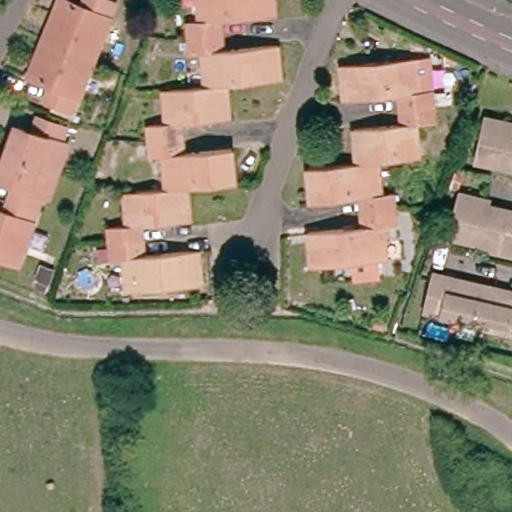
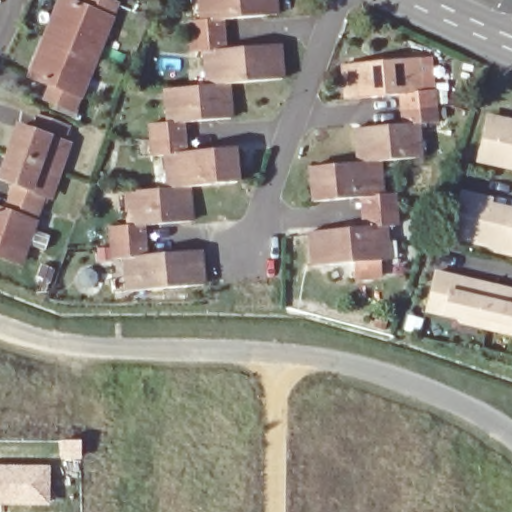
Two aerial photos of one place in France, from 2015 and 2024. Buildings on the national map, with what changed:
unchanged [(72,111),(47,101),(53,86),(29,76),(45,37),(60,0),(63,0),(84,9),(88,0),(105,0),(115,4),(94,57),(72,111)]
unchanged [(199,5),(202,5),(202,0),(274,0),(275,15),(220,20),(221,35),(190,37),(188,21),(200,20),(199,5)]
unchanged [(226,85),(210,85),(209,67),(204,68),(202,52),(191,54),(190,37),(221,35),(222,50),(277,45),(280,80),(226,85)]
unchanged [(405,95),(350,100),(346,65),(433,57),(438,107),(406,109),(405,95)]
unchanged [(229,119),(180,123),(181,137),(150,140),(149,125),(166,122),(165,107),(170,107),(169,89),(210,85),(226,85),(229,119)]
unchanged [(438,107),(440,122),(421,124),(422,139),(418,140),(420,158),(379,162),(361,163),(358,129),(407,124),(406,109),(438,107)]
unchanged [(477,161),(487,118),(512,124),(512,131),(511,134),(512,134),(512,168),(477,161)]
unchanged [(43,197),(37,195),(32,209),(13,263),(0,259),(0,214),(1,214),(11,186),(0,181),(0,159),(11,127),(30,134),(35,119),(61,128),(55,143),(61,145),(52,171),(43,197)]
unchanged [(181,137),(183,152),(232,148),(235,182),(186,187),(171,188),(170,170),(165,171),(164,156),(151,157),(150,140),(181,137)]
unchanged [(379,162),(380,180),(385,180),(386,194),(397,193),(398,209),(367,212),(365,198),(317,202),(313,167),(361,163),(379,162)]
unchanged [(171,188),(187,187),(190,222),(141,226),(142,241),(110,244),(109,227),(127,226),(125,211),(131,210),(130,192),(166,189),(171,188)]
unchanged [(495,242),(488,246),(452,237),(462,194),(488,200),(486,210),(493,211),(498,207),(512,211),(512,246),(495,242)]
unchanged [(358,278),(356,262),(316,267),(313,232),(368,227),(367,212),(398,209),(400,226),(388,227),(390,242),(385,242),(386,260),(383,260),(385,276),(358,278)]
unchanged [(142,241),(143,255),(199,251),(201,286),(132,292),(130,273),(125,273),(123,258),(111,260),(110,244),(142,241)]
unchanged [(510,332),(506,326),(460,314),(454,318),(421,311),(430,273),(462,281),(465,287),(471,288),(472,283),(510,292),(508,297),(512,298),(512,332),(510,332)]
new [(50,505),(0,505),(0,464),(50,465),(50,505)]

